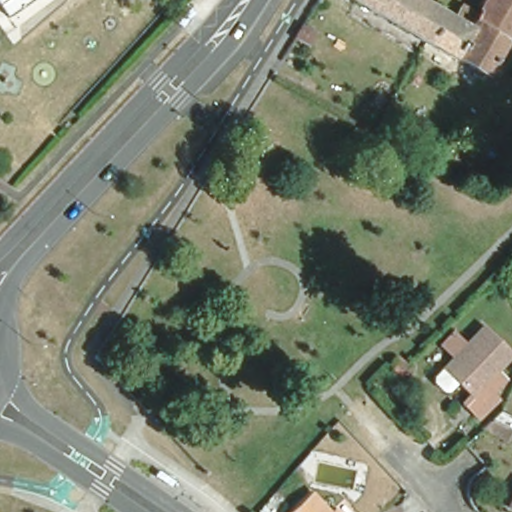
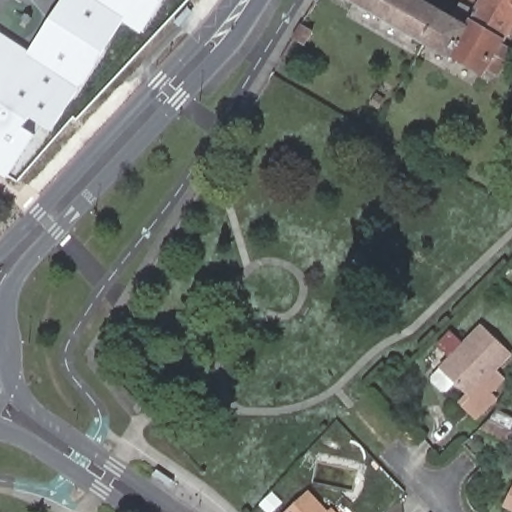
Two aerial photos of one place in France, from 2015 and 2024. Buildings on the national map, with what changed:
new [(61,0),(167,0),(141,37),(123,25),(48,136),(27,122),(20,132),(31,140),(3,180),(0,178),(0,38),(26,59),(61,0)]
unchanged [(482,69),(480,72),(479,74),(455,59),(448,55),(445,57),(405,32),(390,22),(354,0),(431,0),(465,17),(476,0),(512,0),(512,23),(497,46),(512,54),(512,73),(506,82),(482,69)]
unchanged [(299,28),(315,37),(313,40),(307,49),(292,40),(299,28)]
unchanged [(446,388),(445,389),(434,378),(434,377),(434,375),(443,366),(453,356),(445,348),(460,333),(468,342),(487,322),(512,348),(512,359),(502,369),(512,379),(512,387),(503,396),(508,402),(494,416),(474,397),(457,380),(448,388),(446,388)]
unchanged [(396,357),(406,366),(396,376),(385,368),(396,357)]
unchanged [(498,422),(512,408),(512,429),(498,422)]
unchanged [(495,425),(512,433),(507,442),(488,432),(495,425)]
unchanged [(497,499),(507,477),(512,479),(512,507),(497,499)]
unchanged [(315,492),(333,510),(335,508),(339,512),(294,512),(315,492)]
unchanged [(278,498),(286,504),(279,512),(268,512),(267,512),(278,498)]

